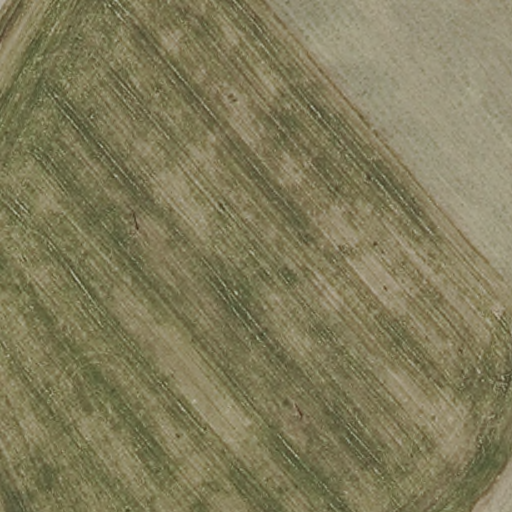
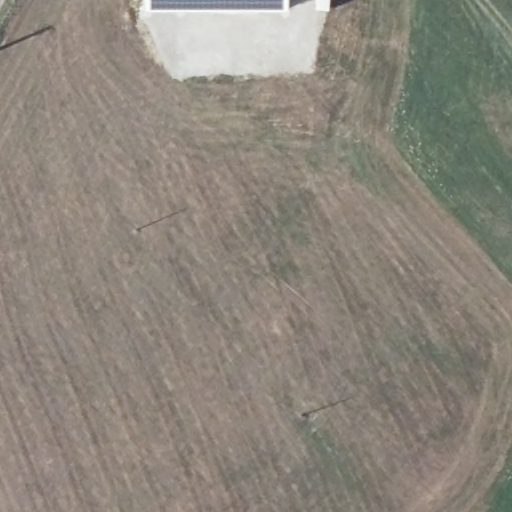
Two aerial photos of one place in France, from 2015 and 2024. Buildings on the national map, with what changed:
new [(146,12),(146,0),(288,0),(288,12),(146,12)]

